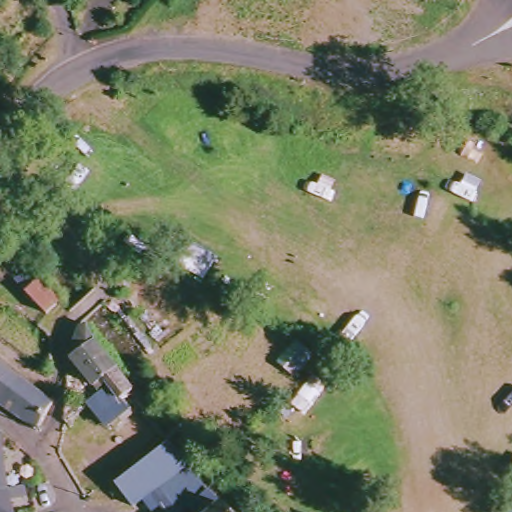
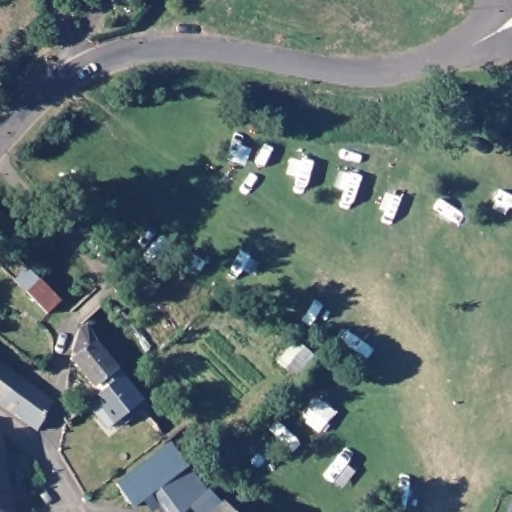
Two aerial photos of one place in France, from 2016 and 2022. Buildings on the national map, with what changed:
unchanged [(62,307),(47,321),(15,287),(30,273),(62,307)]
unchanged [(109,380),(99,387),(77,360),(80,357),(77,353),(85,330),(89,327),(123,375),(112,383),(109,380)]
unchanged [(2,361),(0,364),(0,359),(2,361)]
unchanged [(34,386),(57,403),(40,432),(0,404),(0,364),(2,361),(34,386)]
unchanged [(123,375),(142,402),(112,426),(95,406),(94,403),(115,387),(112,383),(123,375)]
unchanged [(147,449),(134,458),(117,436),(129,427),(147,449)]
unchanged [(9,432),(9,441),(17,491),(0,493),(0,433),(9,432)]
unchanged [(162,491),(138,512),(133,512),(119,494),(173,450),(188,468),(162,491)]
unchanged [(199,507),(192,512),(182,512),(162,491),(188,468),(211,497),(199,507)]
unchanged [(34,500),(20,502),(21,512),(0,512),(0,493),(17,491),(31,487),(34,500)]
unchanged [(211,497),(224,512),(204,512),(199,507),(211,497)]

